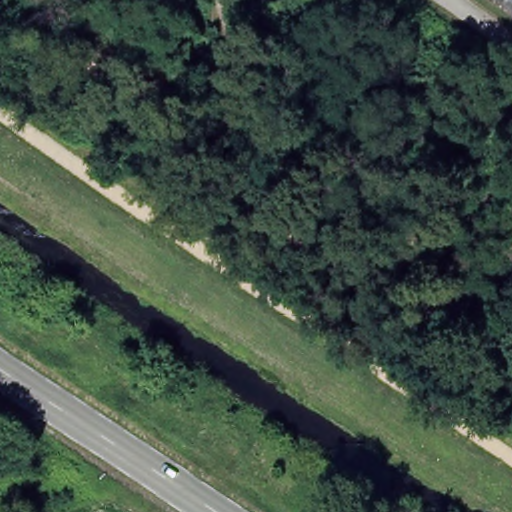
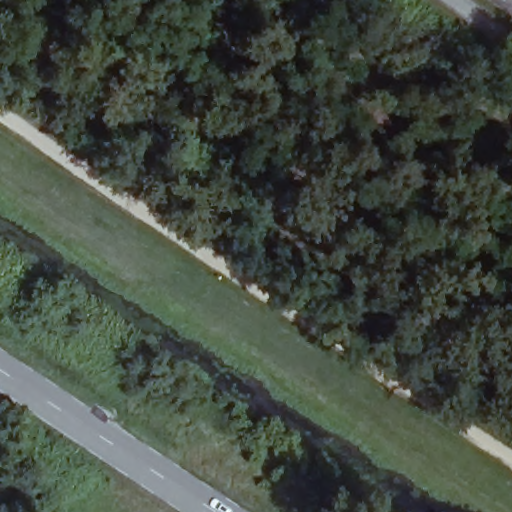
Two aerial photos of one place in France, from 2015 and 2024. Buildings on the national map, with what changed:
unchanged [(0,461),(0,446),(7,454),(0,461)]

